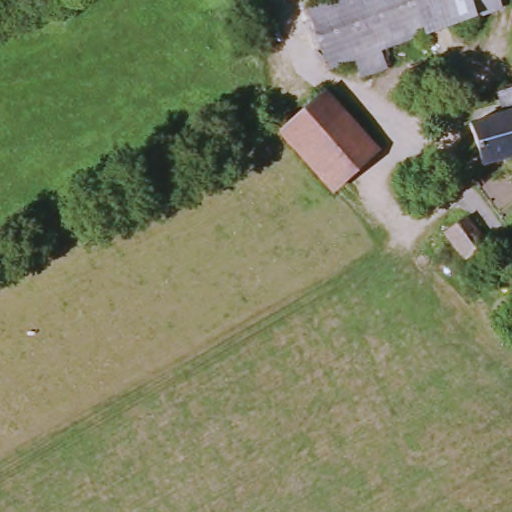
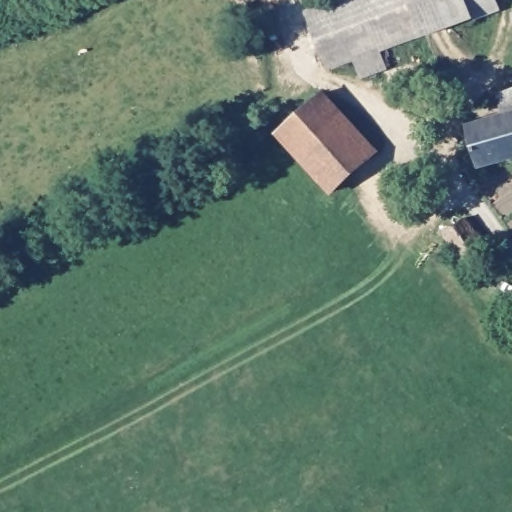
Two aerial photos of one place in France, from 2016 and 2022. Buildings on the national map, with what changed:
unchanged [(385,69),(360,80),(353,64),(328,73),(305,12),(340,0),(501,0),(505,11),(378,56),(385,69)]
unchanged [(512,156),(482,164),(470,124),(505,116),(500,93),(512,90),(512,156)]
unchanged [(380,152),(333,193),(284,137),(325,95),(328,99),(380,152)]
unchanged [(480,268),(468,277),(459,265),(453,269),(432,243),(437,238),(453,226),(472,251),(468,254),(480,268)]

